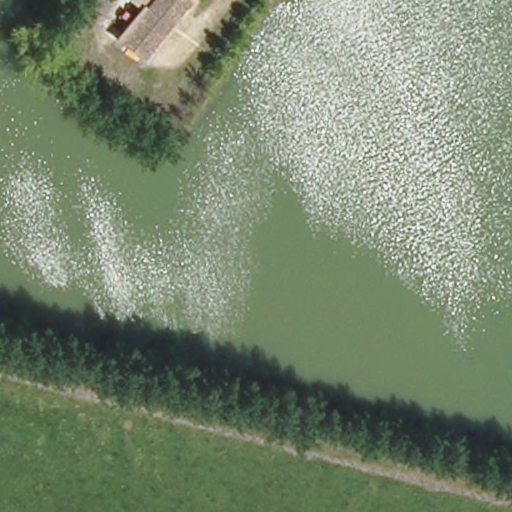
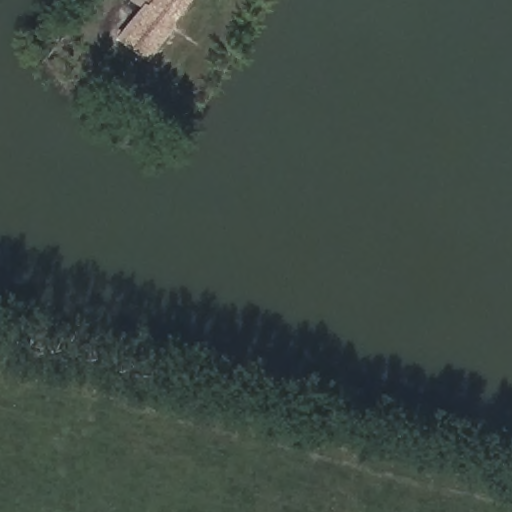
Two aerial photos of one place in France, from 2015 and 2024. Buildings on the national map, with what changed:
unchanged [(119,45),(150,0),(191,0),(142,65),(119,45)]

